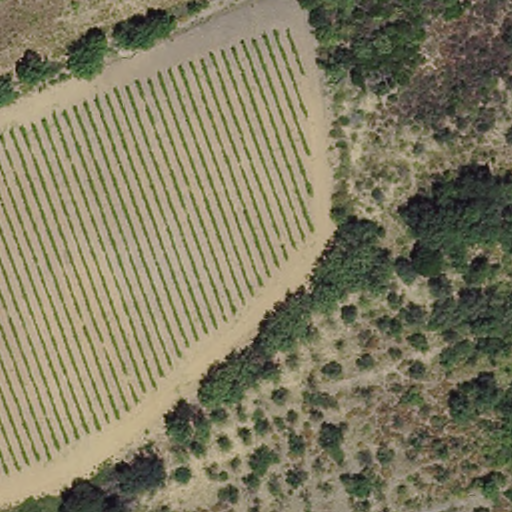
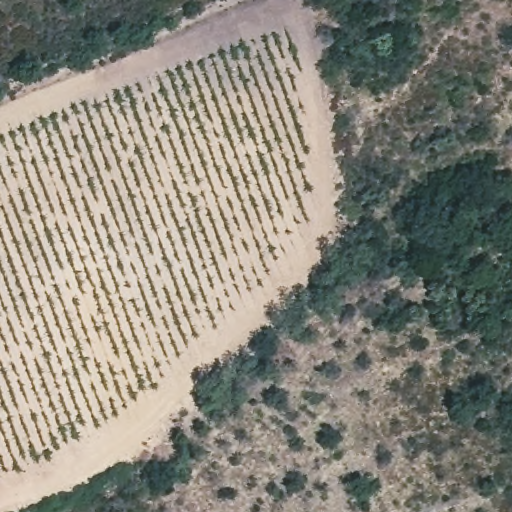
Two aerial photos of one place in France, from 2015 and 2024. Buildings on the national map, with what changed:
unchanged [(499,206),(512,202),(512,229),(509,230),(499,206)]

